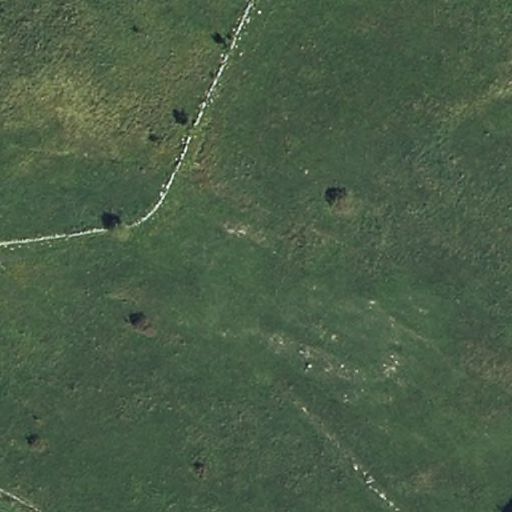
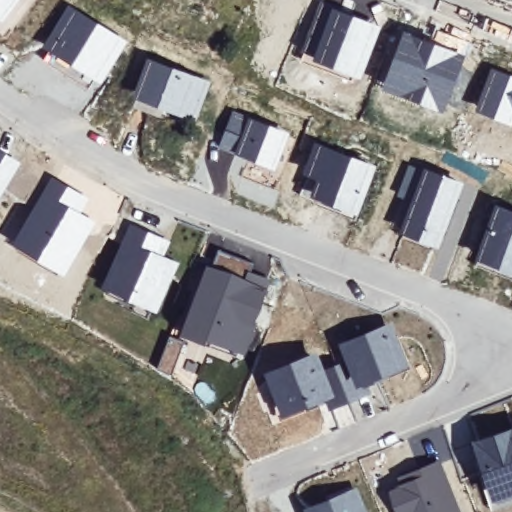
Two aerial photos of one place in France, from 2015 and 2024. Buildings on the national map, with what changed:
new [(0,0),(15,0),(0,19),(0,0)]
new [(323,0),(381,25),(359,78),(301,56),(323,0)]
new [(67,4),(98,21),(69,65),(41,46),(67,4)]
new [(98,21),(128,40),(99,84),(69,65),(98,21)]
new [(404,29),(433,40),(437,29),(471,41),(443,112),(381,86),(404,29)]
new [(149,57),(173,66),(156,108),(154,114),(131,106),(149,57)]
new [(173,66),(211,81),(193,122),(156,108),(173,66)]
new [(493,118),(475,110),(492,67),(511,74),(512,74),(512,125),(493,118)]
new [(232,110),(289,132),(274,169),(218,145),(232,110)]
new [(318,142),(376,165),(355,217),(309,196),(316,181),(305,175),(318,142)]
new [(0,185),(0,158),(11,165),(0,185)]
new [(395,195),(408,162),(427,167),(464,181),(438,249),(400,233),(412,202),(395,195)]
new [(52,175),(89,199),(81,211),(96,220),(64,275),(10,243),(52,175)]
new [(239,175),(279,191),(272,209),(233,191),(239,175)]
new [(512,210),(512,272),(476,257),(496,204),(512,210)]
new [(163,255),(178,262),(156,311),(103,287),(131,224),(171,240),(163,255)]
new [(207,261),(211,263),(218,249),(253,262),(249,270),(271,280),(246,353),(179,331),(207,261)]
new [(344,360),(336,342),(390,320),(409,366),(368,385),(371,393),(348,402),(343,391),(336,395),(324,367),(344,360)]
new [(169,335),(186,341),(173,373),(157,366),(169,335)]
new [(317,350),(324,367),(336,395),(281,416),(263,371),(317,350)]
new [(493,500),(473,440),(512,426),(512,493),(493,500)]
new [(398,482),(395,476),(439,458),(461,512),(395,512),(386,488),(398,482)]
new [(369,512),(306,512),(304,508),(358,485),(369,512)]

